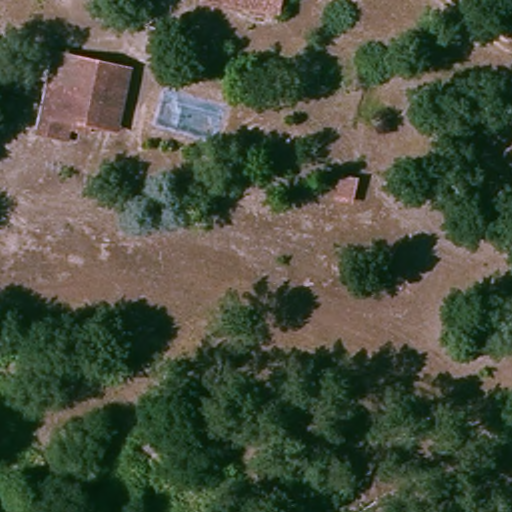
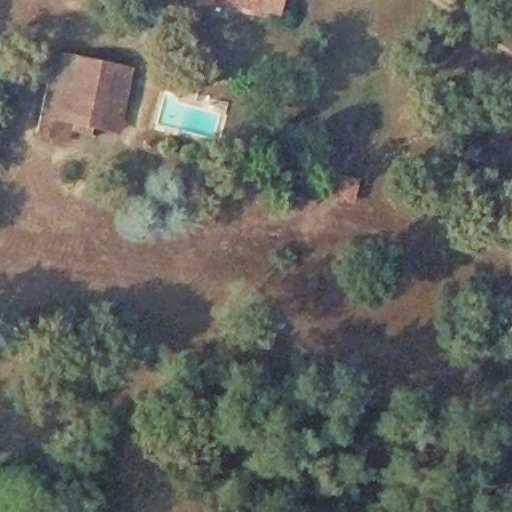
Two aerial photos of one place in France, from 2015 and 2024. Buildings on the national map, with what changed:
unchanged [(201,10),(202,0),(217,0),(216,10),(201,10)]
unchanged [(216,10),(217,0),(285,0),(284,14),(216,10)]
unchanged [(47,119),(52,65),(85,67),(83,121),(47,119)]
unchanged [(126,71),(123,125),(83,121),(85,67),(126,71)]

